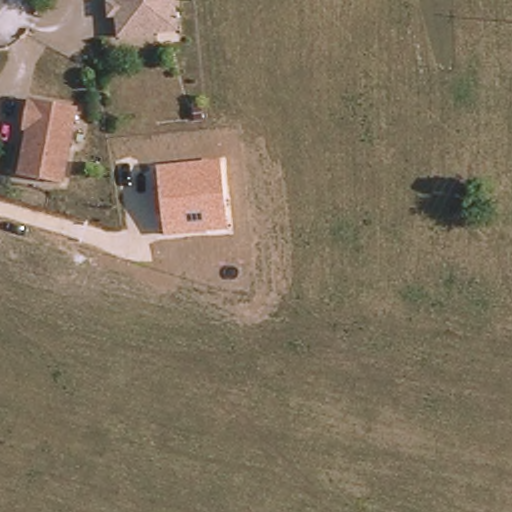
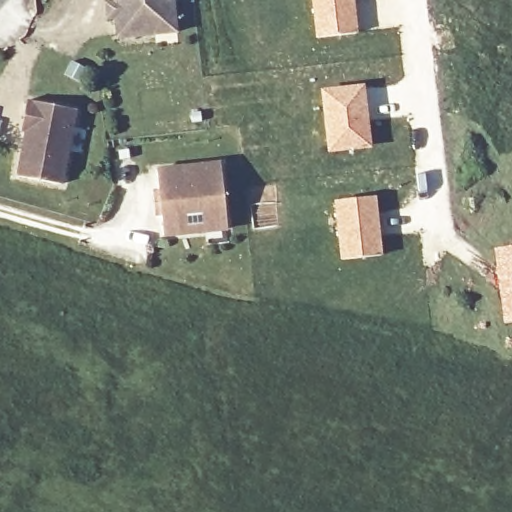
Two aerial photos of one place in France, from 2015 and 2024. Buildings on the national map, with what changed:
unchanged [(177,0),(180,25),(159,27),(160,37),(122,41),(118,0),(177,0)]
new [(315,39),(311,0),(355,0),(358,32),(315,39)]
new [(364,82),(372,147),(326,154),(318,88),(364,82)]
unchanged [(75,112),(63,186),(20,179),(29,125),(25,125),(29,104),(75,112)]
unchanged [(228,229),(164,236),(156,167),(219,160),(228,229)]
new [(376,195),(383,255),(339,261),(332,200),(376,195)]
new [(512,323),(503,325),(492,247),(512,245),(512,323)]

